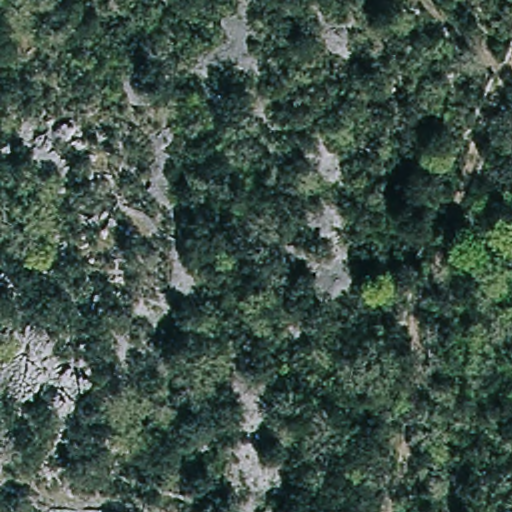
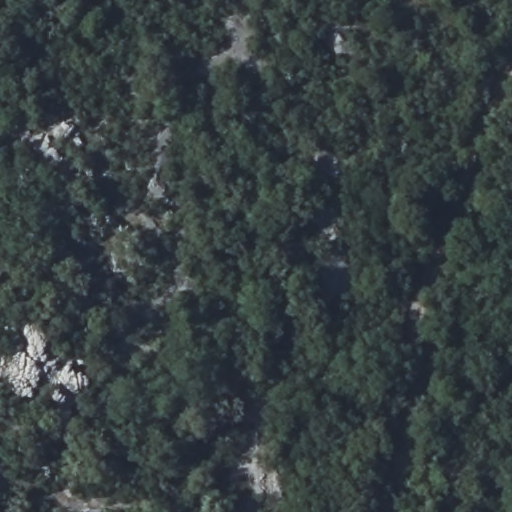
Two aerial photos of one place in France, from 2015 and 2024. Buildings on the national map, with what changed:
[]

